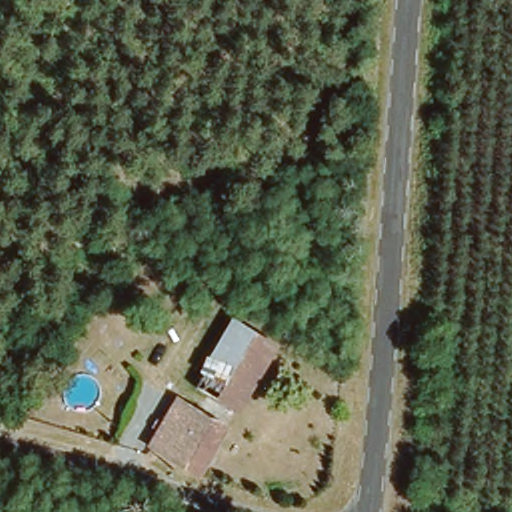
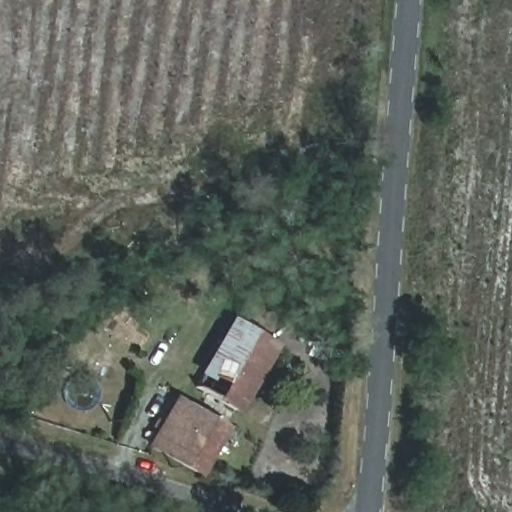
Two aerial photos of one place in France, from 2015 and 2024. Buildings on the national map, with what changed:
unchanged [(186,381),(237,313),(281,341),(234,410),(186,381)]
unchanged [(101,328),(97,357),(76,355),(80,326),(101,328)]
unchanged [(148,438),(176,396),(229,432),(199,472),(148,438)]

